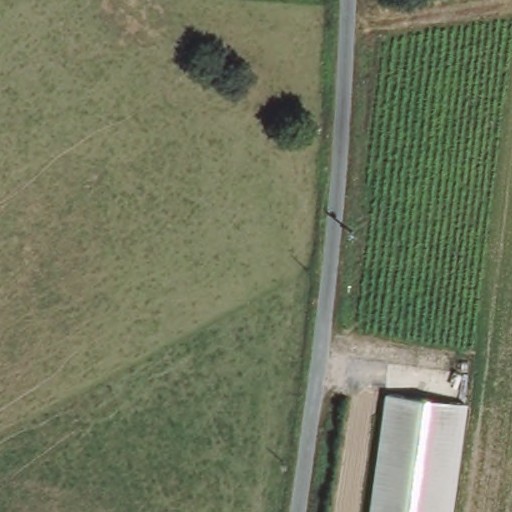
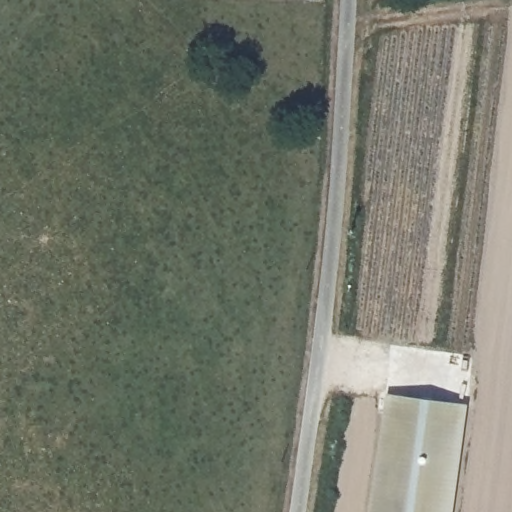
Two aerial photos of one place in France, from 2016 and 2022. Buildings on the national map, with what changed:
unchanged [(446,512),(369,512),(384,397),(460,406),(446,512)]

